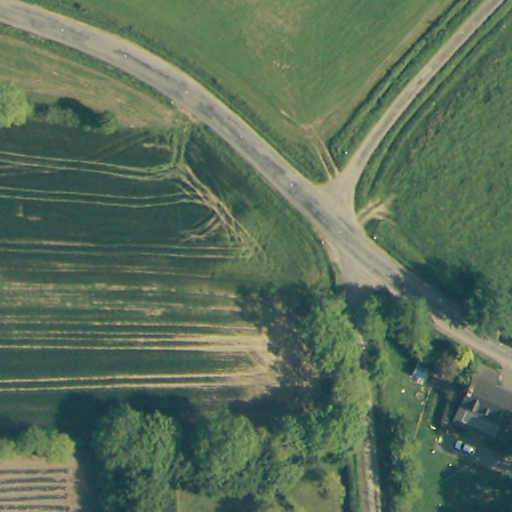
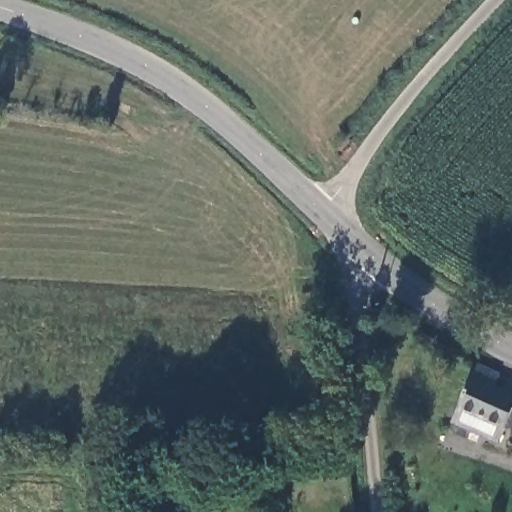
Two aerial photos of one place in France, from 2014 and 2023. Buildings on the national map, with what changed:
unchanged [(467,409),(485,366),(504,373),(501,385),(512,390),(512,425),(510,430),(467,409)]

